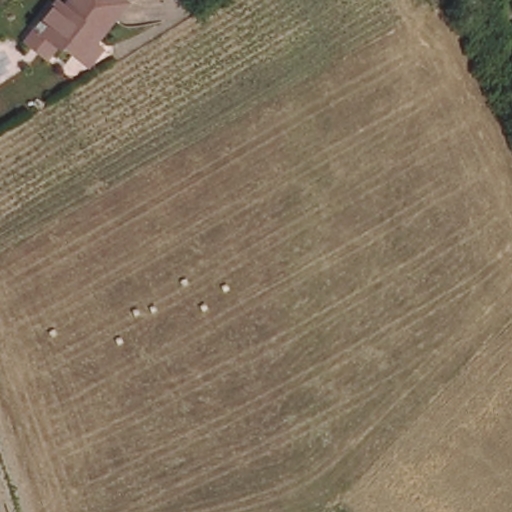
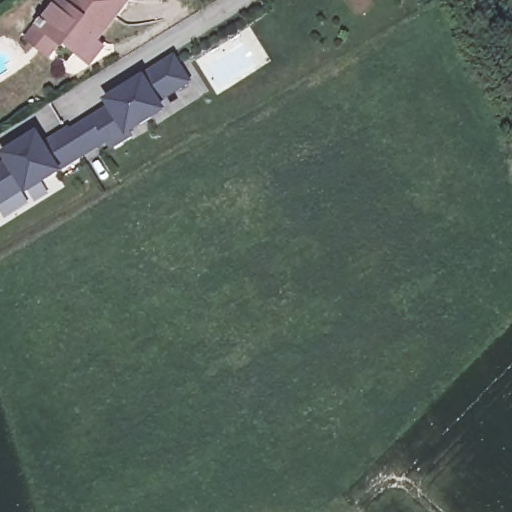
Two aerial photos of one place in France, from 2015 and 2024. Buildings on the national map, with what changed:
unchanged [(80,50),(66,37),(63,40),(58,36),(45,52),(25,35),(38,19),(45,11),(47,14),(60,0),(68,0),(71,2),(73,0),(124,0),(93,35),(107,46),(93,61),(80,50)]
new [(6,156),(36,137),(42,147),(68,131),(71,135),(94,120),(92,118),(111,106),(108,102),(142,81),(141,79),(173,59),(188,82),(156,103),(161,110),(127,132),(130,136),(111,148),(106,139),(83,154),(56,170),(57,171),(27,190),(25,186),(0,202),(0,169),(10,163),(6,156)]

